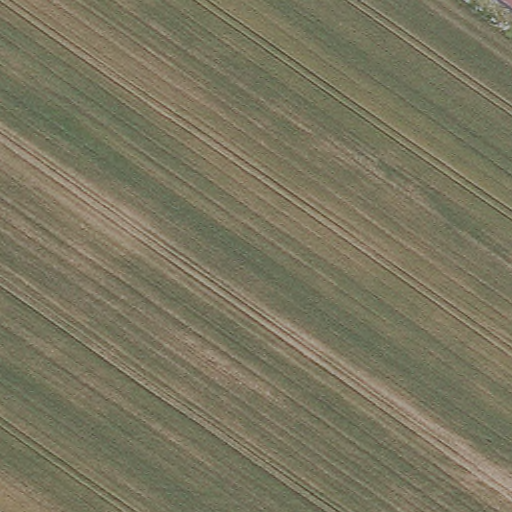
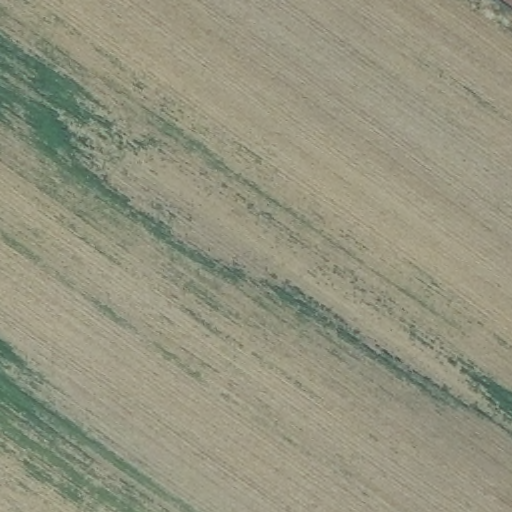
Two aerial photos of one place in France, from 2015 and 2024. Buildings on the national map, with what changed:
unchanged [(508,0),(512,0),(512,3),(508,0)]

